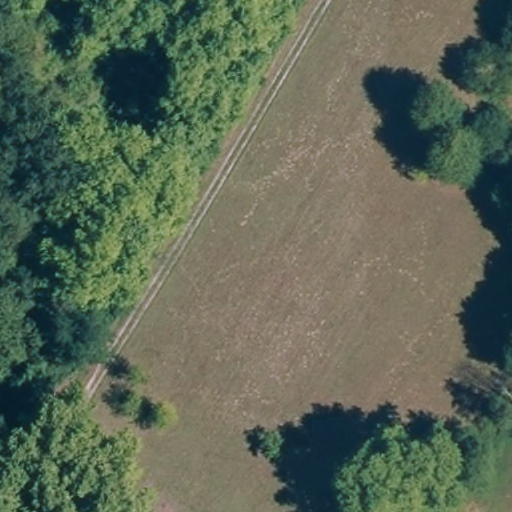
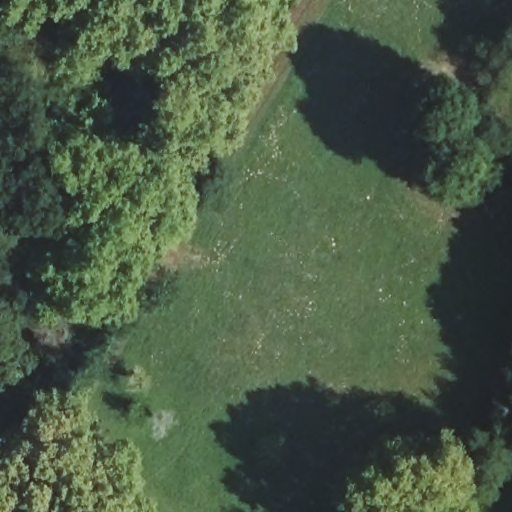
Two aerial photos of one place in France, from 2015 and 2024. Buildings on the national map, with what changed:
[]

